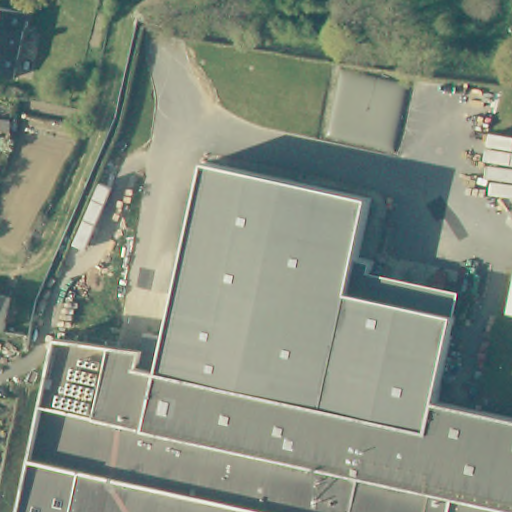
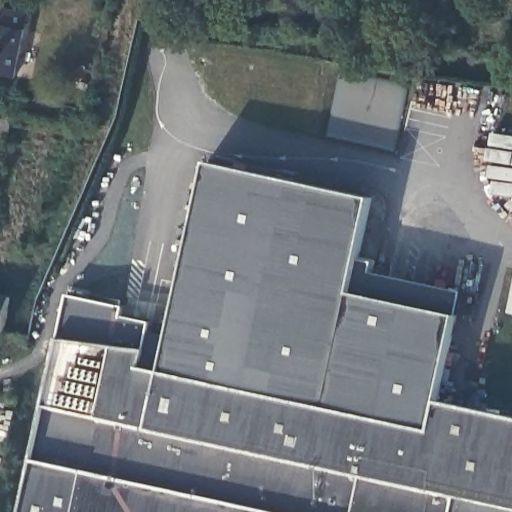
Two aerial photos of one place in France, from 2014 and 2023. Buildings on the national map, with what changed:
unchanged [(0,12),(22,15),(17,48),(0,45),(0,12)]
unchanged [(12,79),(0,77),(0,45),(17,48),(12,79)]
unchanged [(431,433),(159,375),(137,371),(142,354),(147,335),(170,340),(209,165),(372,198),(360,261),(372,263),(371,273),(460,292),(456,316),(438,405),(431,433)]
new [(142,354),(55,342),(67,293),(125,306),(121,318),(150,324),(147,335),(142,354)]
unchanged [(0,328),(0,295),(10,296),(4,329),(0,328)]
unchanged [(510,313),(512,301),(512,314),(510,313)]
unchanged [(142,354),(137,371),(159,375),(431,433),(438,405),(512,421),(512,512),(20,512),(55,342),(142,354)]

